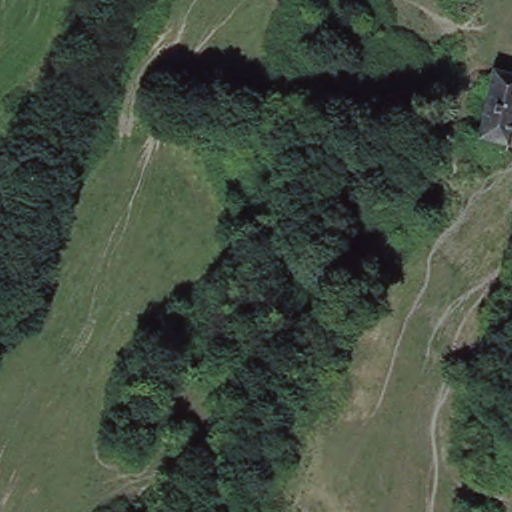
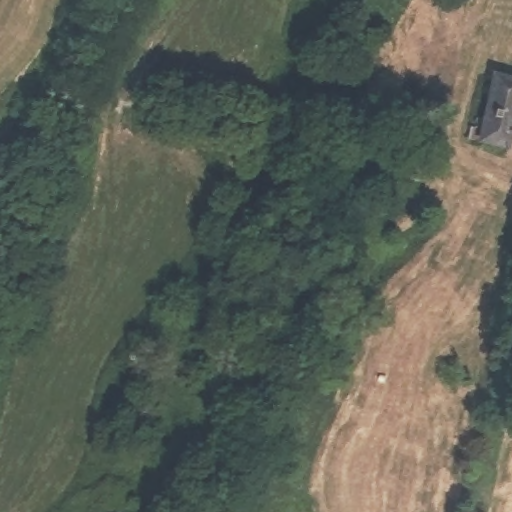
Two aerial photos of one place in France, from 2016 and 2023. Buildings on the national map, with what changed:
unchanged [(505,150),(477,144),(479,135),(470,133),(474,121),(482,124),(494,75),(512,80),(512,125),(505,150)]

